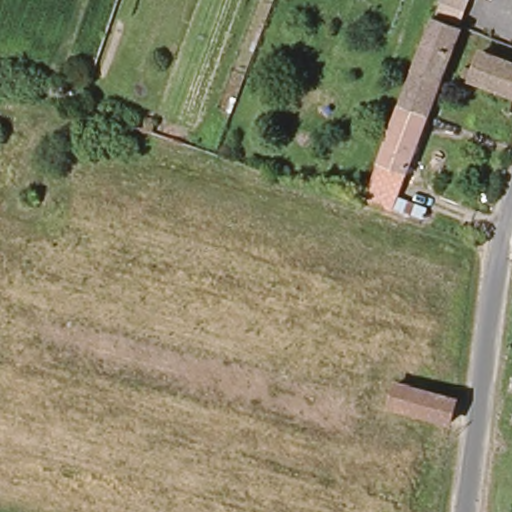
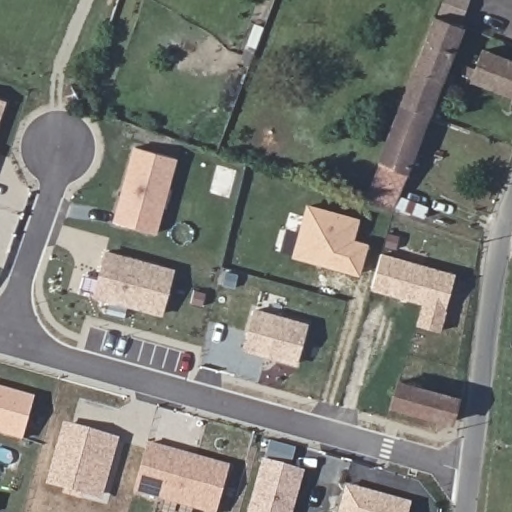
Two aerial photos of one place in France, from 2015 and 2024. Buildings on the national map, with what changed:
unchanged [(468,0),(458,25),(431,17),(439,0),(468,0)]
unchanged [(429,20),(460,31),(425,119),(396,107),(429,20)]
unchanged [(464,72),(467,66),(475,69),(484,48),(512,59),(512,92),(464,72)]
new [(0,117),(0,103),(4,105),(0,117)]
unchanged [(367,192),(376,167),(383,143),(396,107),(425,119),(392,203),(367,192)]
new [(116,224),(135,151),(177,162),(157,235),(116,224)]
new [(295,258),(309,210),(358,224),(352,244),(367,249),(359,277),(295,258)]
new [(440,331),(416,324),(421,304),(369,290),(380,252),(455,274),(440,331)]
new [(95,298),(107,256),(173,273),(162,316),(95,298)]
new [(245,351),(255,312),(307,327),(296,366),(245,351)]
unchanged [(449,423),(392,407),(399,382),(454,398),(449,423)]
new [(0,390),(34,400),(23,440),(0,433),(0,390)]
new [(49,485),(66,427),(111,440),(95,497),(49,485)]
new [(266,461),(271,443),(295,450),(290,468),(266,461)]
new [(140,473),(148,446),(162,450),(230,469),(222,497),(154,478),(140,473)]
new [(264,463),(302,473),(291,512),(251,512),(264,463)]
new [(349,485),(410,502),(408,512),(339,512),(349,485)]

